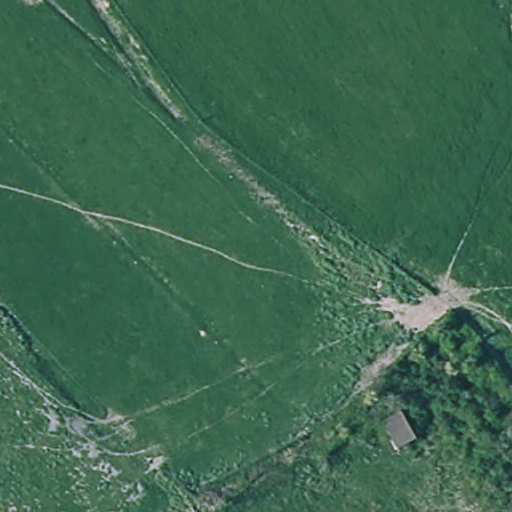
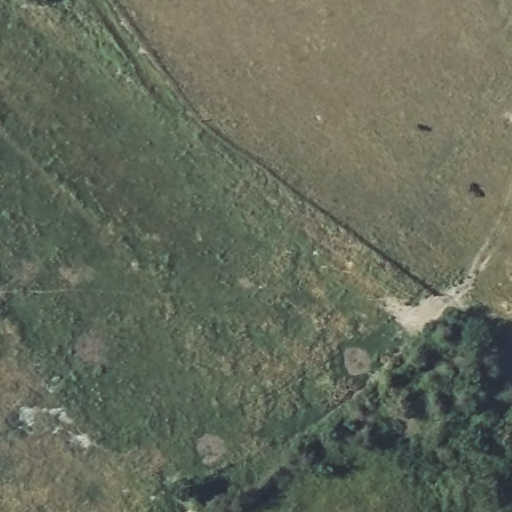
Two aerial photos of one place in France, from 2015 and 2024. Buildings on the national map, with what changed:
unchanged [(404,417),(416,439),(399,453),(382,425),(404,417)]

